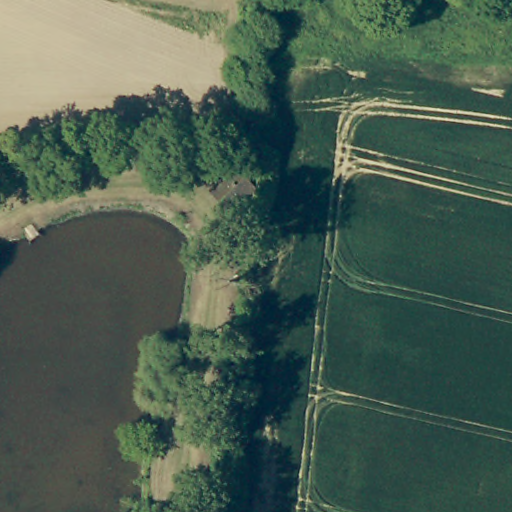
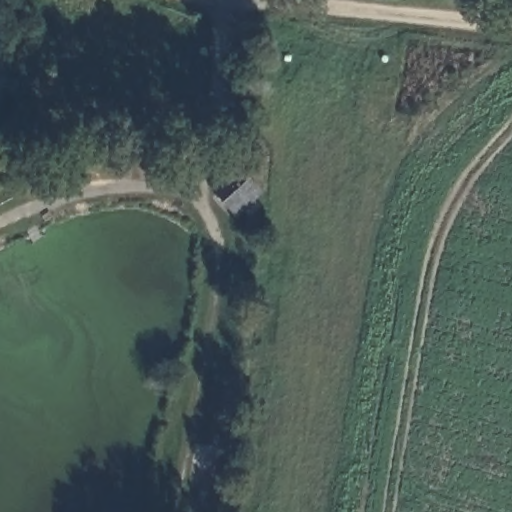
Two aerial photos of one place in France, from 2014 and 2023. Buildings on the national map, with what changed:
unchanged [(256,187),(248,194),(229,208),(206,180),(232,159),(249,179),(256,187)]

